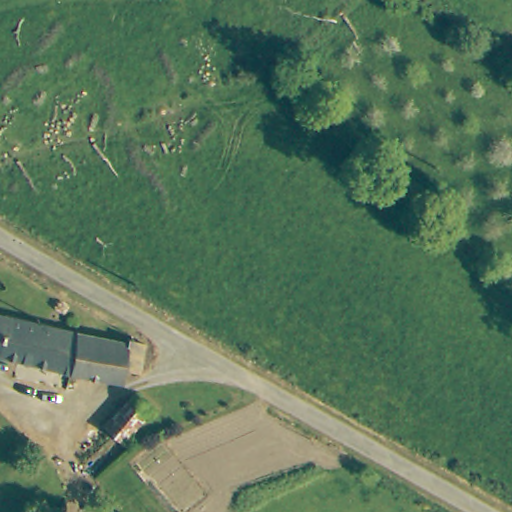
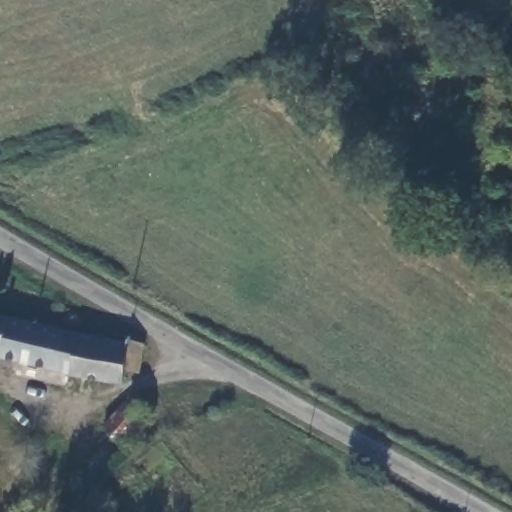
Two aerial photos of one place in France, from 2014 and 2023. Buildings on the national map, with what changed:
unchanged [(127,371),(125,386),(2,365),(0,364),(0,326),(5,329),(11,323),(124,349),(131,339),(149,349),(144,374),(127,371)]
unchanged [(71,450),(127,394),(146,412),(117,439),(112,435),(84,463),(71,450)]

